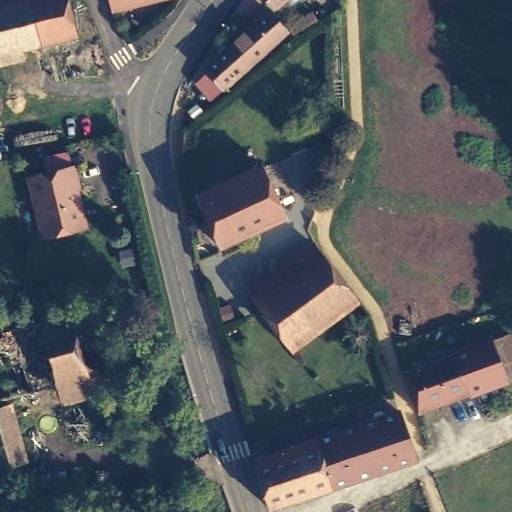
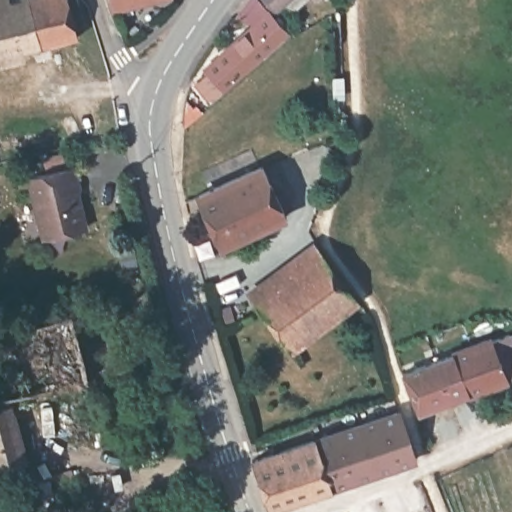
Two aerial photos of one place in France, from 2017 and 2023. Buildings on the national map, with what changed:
unchanged [(45,40),(46,48),(36,50),(33,43),(0,51),(0,0),(8,0),(8,1),(12,0),(65,0),(73,34),(45,40)]
unchanged [(152,0),(118,8),(117,0),(152,0)]
unchanged [(272,0),(281,0),(276,5),(272,0)]
unchanged [(201,86),(214,71),(210,67),(270,11),(286,26),(211,95),(201,86)]
unchanged [(219,244),(198,194),(251,171),(248,164),(263,158),(265,164),(285,216),(219,244)]
unchanged [(40,231),(38,226),(24,170),(71,159),(78,184),(74,185),(83,217),(83,221),(40,231)]
unchanged [(356,284),(292,334),(253,287),(318,236),(356,284)]
unchanged [(95,303),(110,365),(5,394),(23,458),(0,464),(0,327),(95,303)]
unchanged [(419,365),(504,332),(512,351),(512,376),(434,404),(419,365)]
unchanged [(414,459),(271,508),(254,460),(399,412),(414,459)]

